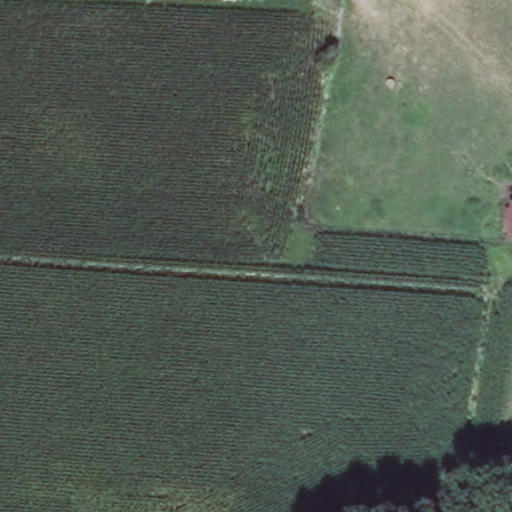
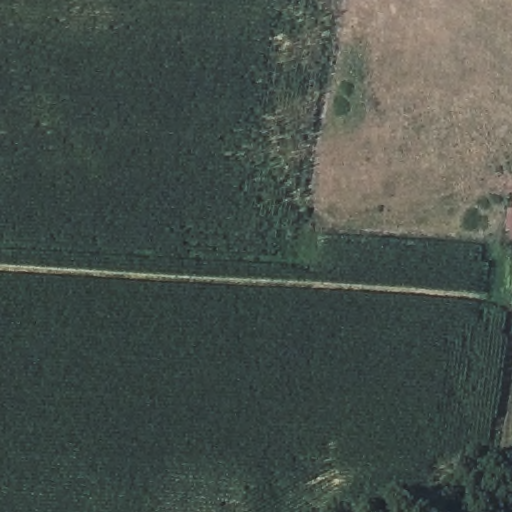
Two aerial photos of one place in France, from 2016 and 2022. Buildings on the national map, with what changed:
unchanged [(507,202),(512,199),(512,241),(505,240),(507,202)]

